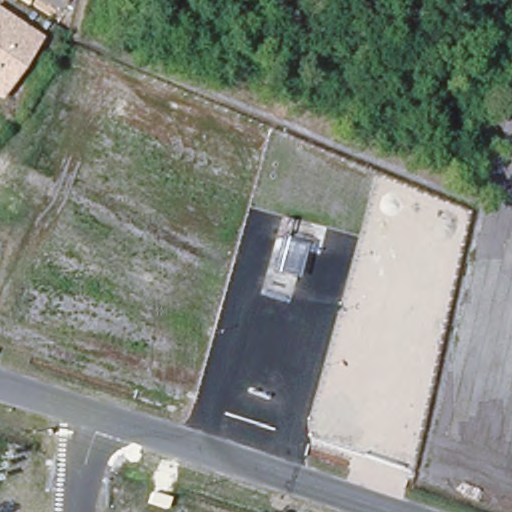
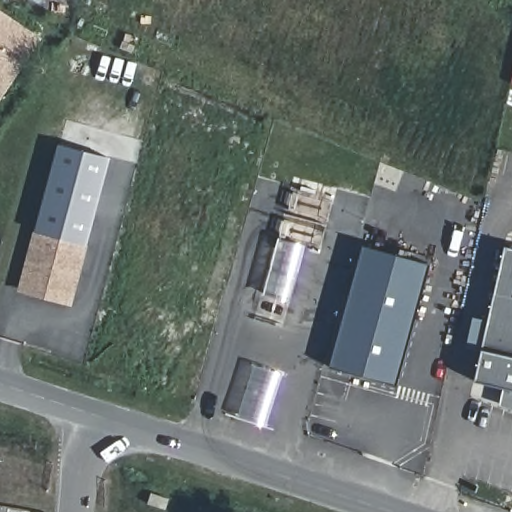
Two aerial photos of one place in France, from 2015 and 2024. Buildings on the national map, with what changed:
unchanged [(0,99),(0,13),(39,39),(1,100),(0,99)]
new [(73,306),(18,291),(35,231),(58,145),(111,158),(88,245),(73,306)]
new [(290,301),(265,294),(279,238),(306,245),(290,301)]
new [(330,366),(363,246),(430,263),(397,385),(330,366)]
new [(499,406),(503,387),(476,381),(482,351),(468,348),(473,316),(489,320),(506,246),(512,248),(512,411),(499,406)]

